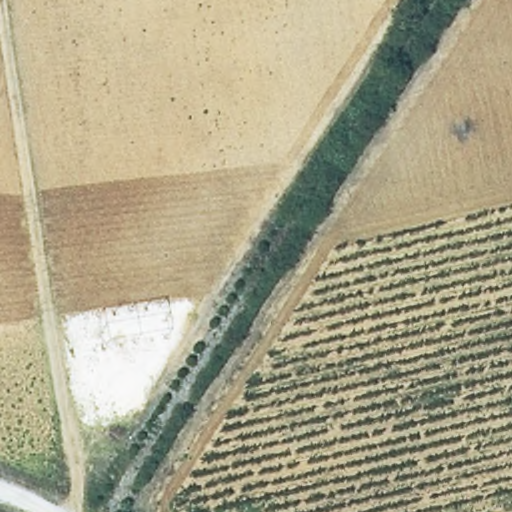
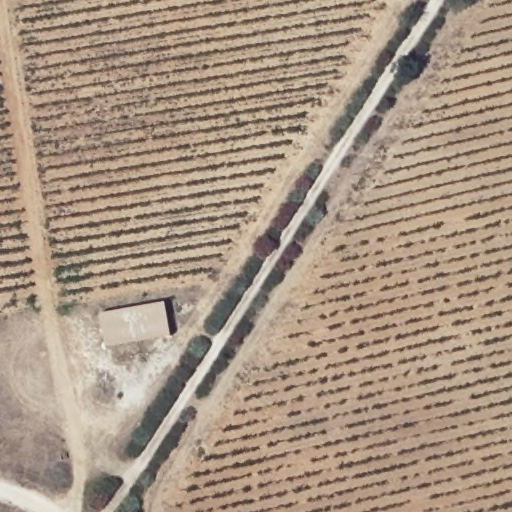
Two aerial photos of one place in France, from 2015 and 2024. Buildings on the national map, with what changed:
new [(168,336),(103,346),(97,313),(162,301),(168,336)]

